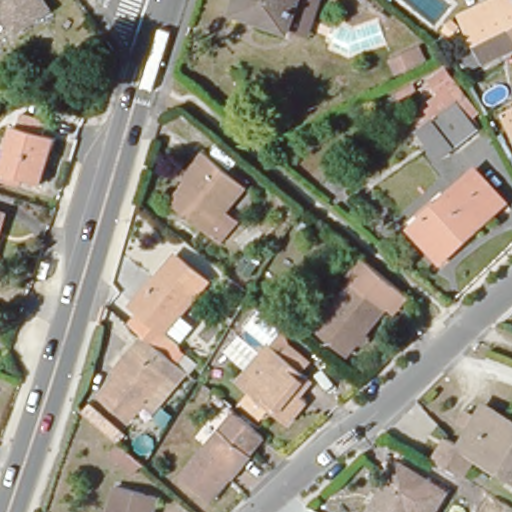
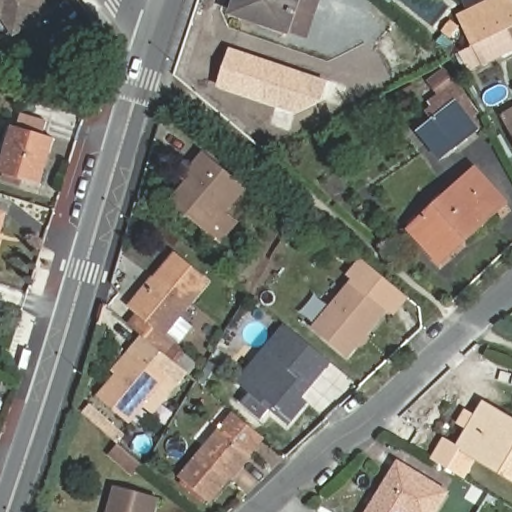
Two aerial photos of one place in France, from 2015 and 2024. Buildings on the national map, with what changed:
unchanged [(53,16),(24,36),(18,27),(4,24),(0,26),(0,0),(41,0),(53,16)]
unchanged [(311,39),(294,32),(291,38),(230,17),(236,0),(314,0),(323,3),(311,39)]
unchanged [(477,49),(463,21),(509,0),(510,0),(512,3),(512,52),(485,67),(477,49)]
new [(329,81),(320,100),(294,113),(217,87),(229,47),(329,81)]
unchanged [(421,131),(434,121),(419,95),(446,71),(467,101),(483,136),(440,160),(421,131)]
unchanged [(416,102),(391,114),(384,100),(410,87),(416,102)]
unchanged [(508,128),(502,116),(512,111),(512,137),(508,128)]
unchanged [(41,186),(0,173),(12,129),(54,141),(41,186)]
unchanged [(217,240),(204,229),(174,202),(184,182),(182,177),(203,155),(241,186),(224,205),(237,217),(217,240)]
unchanged [(511,204),(443,269),(409,234),(477,168),(511,204)]
unchanged [(0,227),(0,209),(9,212),(5,228),(0,227)]
unchanged [(212,286),(172,336),(180,344),(170,355),(151,339),(141,331),(151,319),(144,312),(135,304),(156,280),(160,283),(182,259),(212,286)]
unchanged [(359,348),(328,323),(367,275),(398,301),(359,348)]
unchanged [(151,407),(138,424),(109,397),(125,379),(120,373),(139,352),(151,339),(170,355),(183,365),(188,369),(176,382),(180,387),(158,412),(151,407)]
unchanged [(303,399),(309,406),(289,428),(243,387),(274,347),(311,378),(317,383),(303,399)]
unchanged [(481,457),(467,481),(456,474),(454,473),(434,460),(447,437),(461,444),(469,428),(460,424),(468,409),(478,414),(484,402),(512,416),(512,474),(481,457)]
unchanged [(239,484),(234,480),(213,504),(184,479),(238,419),(266,442),(251,459),(257,464),(239,484)]
unchanged [(373,512),(389,484),(396,488),(405,470),(448,493),(438,512),(373,512)]
unchanged [(152,497),(148,512),(105,512),(111,487),(152,497)]
demolished [(504,512),(476,512),(487,498),(504,512)]

